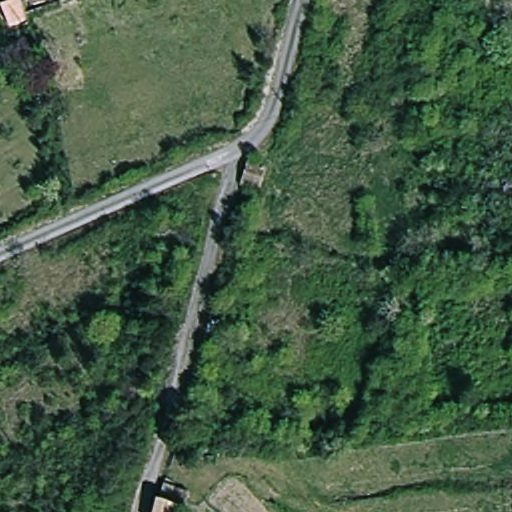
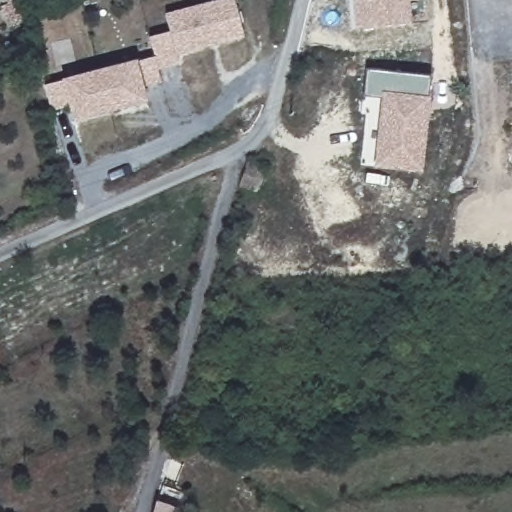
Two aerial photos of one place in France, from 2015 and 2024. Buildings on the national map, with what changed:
new [(232,0),(242,37),(174,54),(163,15),(226,0),(232,0)]
new [(355,30),(352,0),(409,0),(411,24),(368,28),(355,30)]
new [(133,64),(143,104),(70,121),(60,81),(133,64)]
new [(423,173),(373,167),(381,99),(364,97),(367,70),(430,75),(428,96),(431,96),(423,173)]
unchanged [(240,186),(243,172),(251,161),(267,169),(255,193),(240,186)]
unchanged [(179,505),(178,512),(155,512),(156,503),(179,505)]

